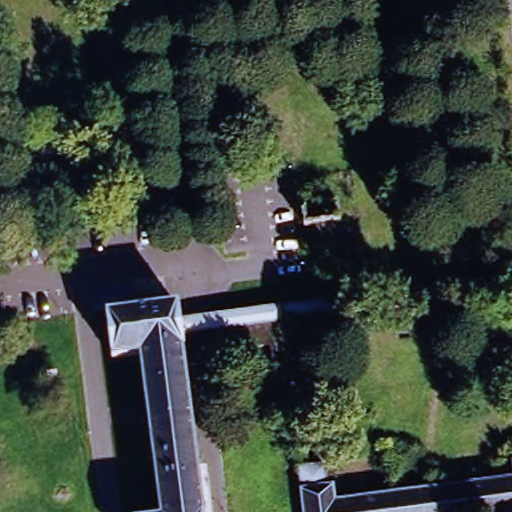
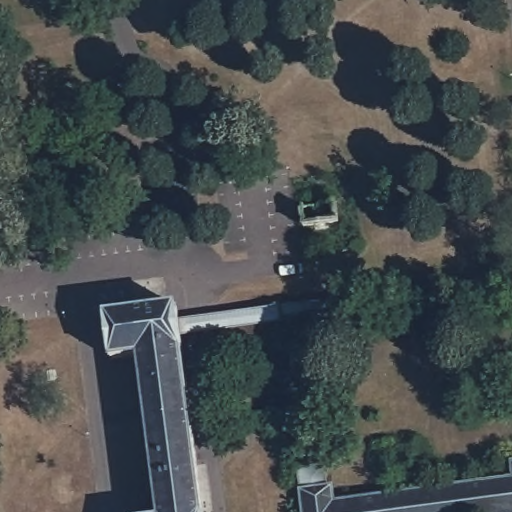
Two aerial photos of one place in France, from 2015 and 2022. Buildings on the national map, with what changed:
unchanged [(108,361),(103,318),(177,309),(179,323),(512,277),(512,293),(282,324),(287,359),(272,361),(270,345),(207,352),(205,335),(181,338),(205,512),(158,512),(137,358),(108,361)]
unchanged [(282,422),(280,401),(287,400),(290,422),(282,422)]
unchanged [(309,449),(312,469),(318,469),(320,490),(350,486),(352,502),(512,478),(512,512),(306,512),(298,450),(309,449)]

